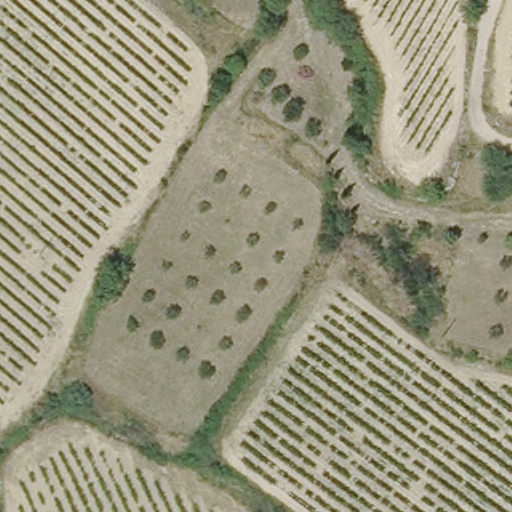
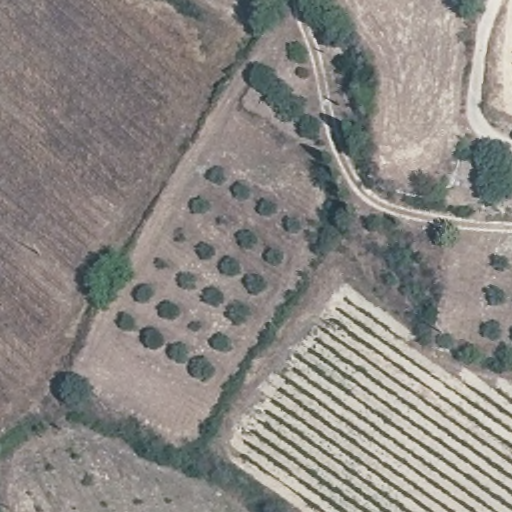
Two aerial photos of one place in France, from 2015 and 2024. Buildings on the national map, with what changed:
[]

